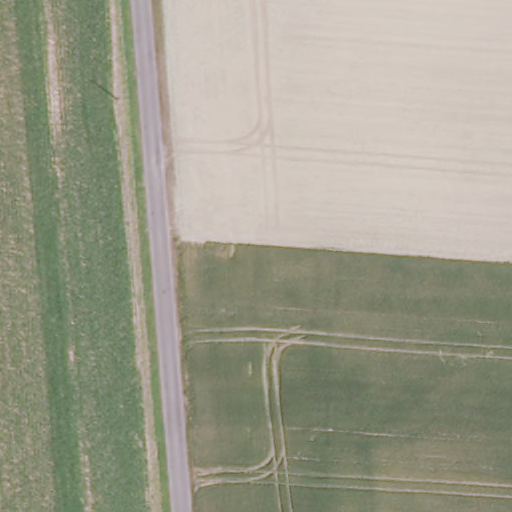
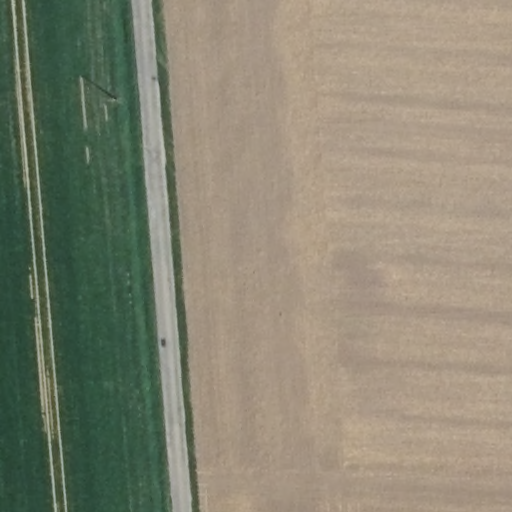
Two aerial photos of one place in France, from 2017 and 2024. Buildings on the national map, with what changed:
[]

